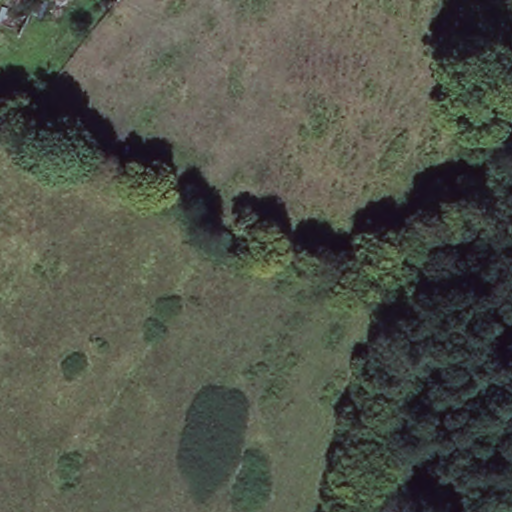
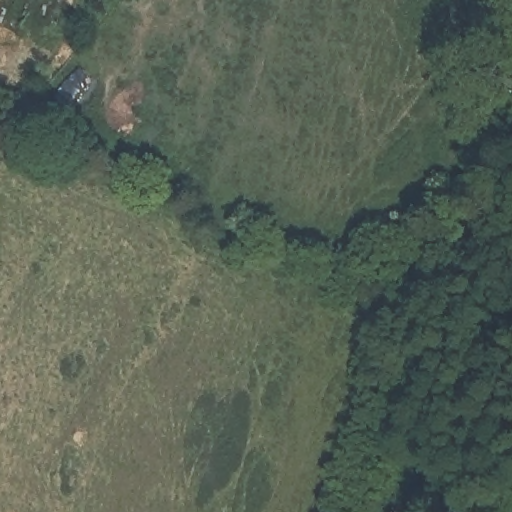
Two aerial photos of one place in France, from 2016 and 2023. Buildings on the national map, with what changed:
unchanged [(37,0),(19,42),(0,34),(0,22),(10,0),(37,0)]

